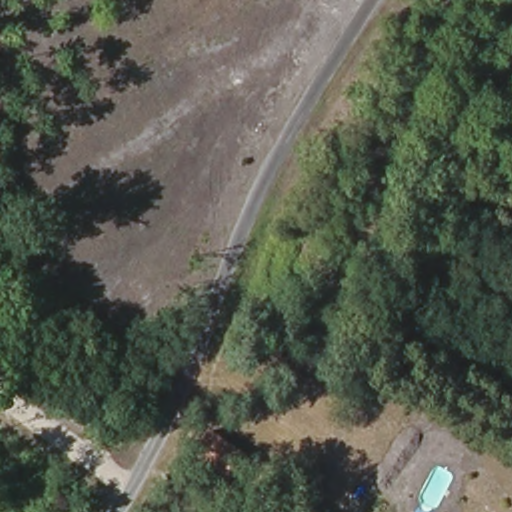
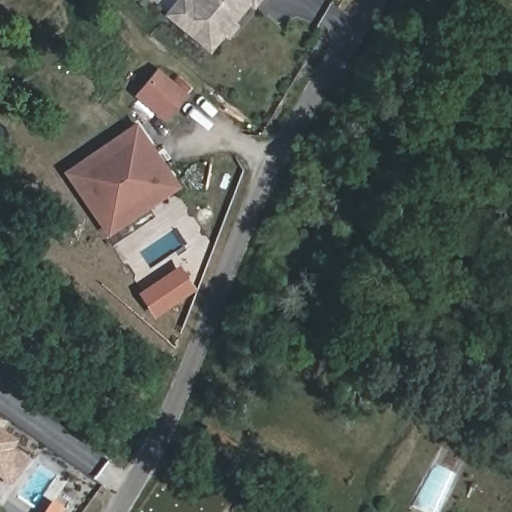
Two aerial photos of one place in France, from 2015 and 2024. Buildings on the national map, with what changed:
new [(255,8),(251,5),(237,22),(241,25),(230,38),(226,35),(212,52),(165,14),(177,0),(262,0),(255,8)]
new [(167,121),(135,95),(159,67),(191,93),(167,121)]
new [(109,237),(64,172),(138,121),(183,187),(109,237)]
new [(0,471),(0,427),(20,442),(0,471)]
new [(219,439),(253,462),(238,484),(204,461),(219,439)]
unchanged [(310,512),(313,506),(323,512),(310,512)]

